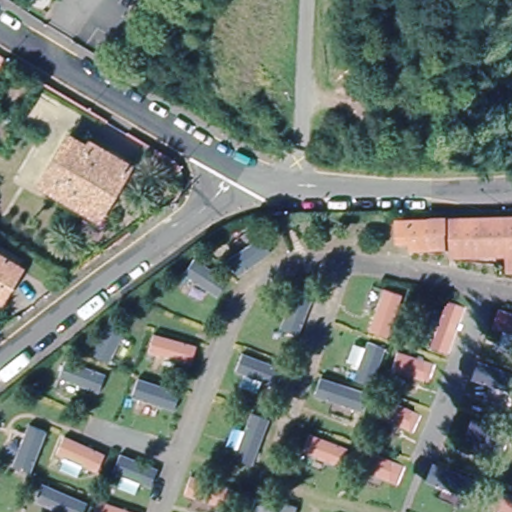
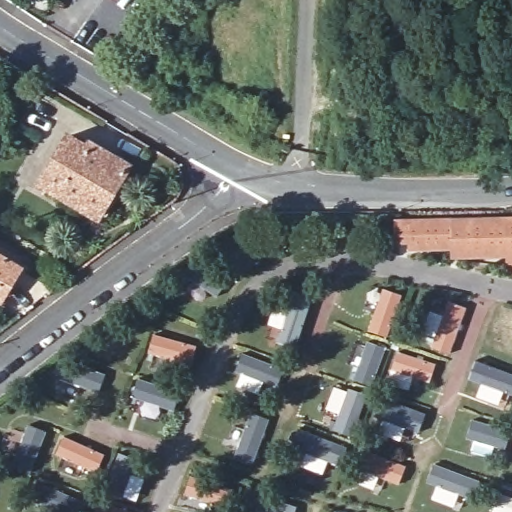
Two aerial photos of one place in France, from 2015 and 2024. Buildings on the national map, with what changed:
unchanged [(44,179),(67,144),(88,156),(90,153),(123,174),(93,224),(59,202),(37,189),(44,179)]
unchanged [(446,218),(448,250),(409,251),(408,243),(394,244),(393,220),(446,218)]
unchanged [(509,275),(507,255),(456,260),(453,224),(512,218),(512,275),(509,275)]
unchanged [(0,294),(0,249),(19,260),(0,294)]

